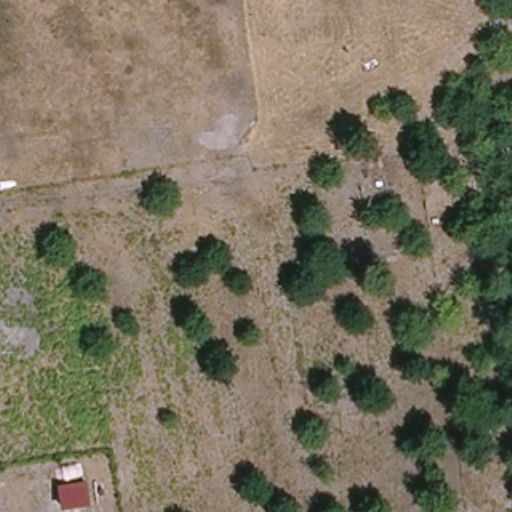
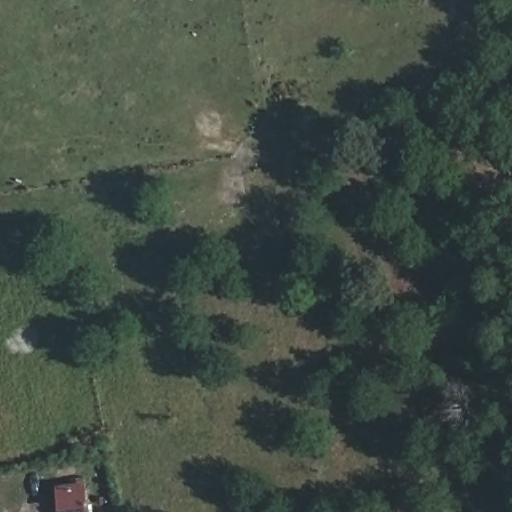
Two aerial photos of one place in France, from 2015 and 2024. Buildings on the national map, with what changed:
unchanged [(91,505),(61,510),(59,486),(88,481),(91,505)]

